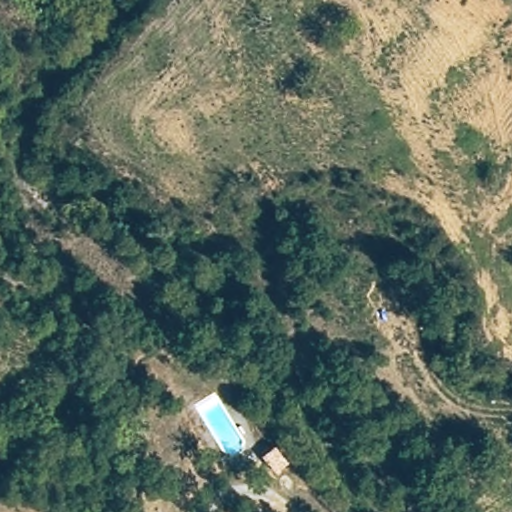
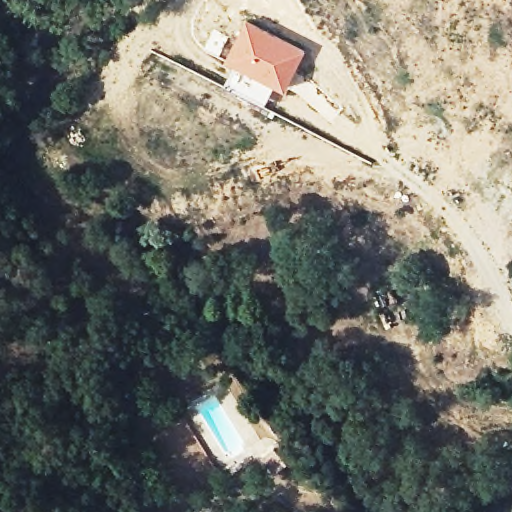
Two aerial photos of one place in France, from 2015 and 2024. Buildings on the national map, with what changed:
new [(305,50),(284,91),(224,60),(245,19),(305,50)]
new [(264,476),(249,462),(259,449),(274,464),(264,476)]

